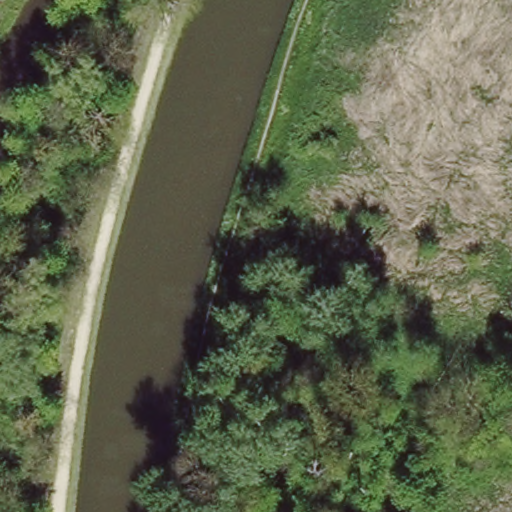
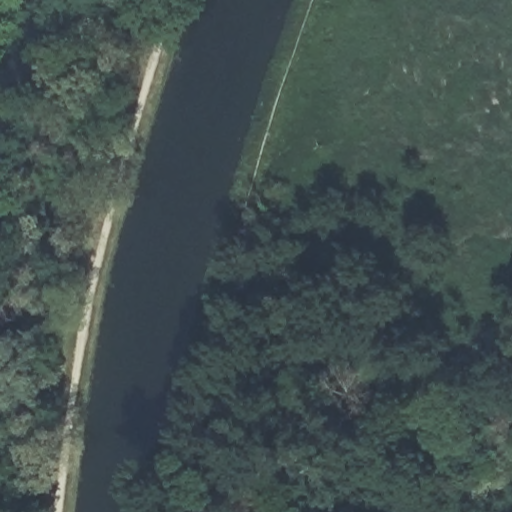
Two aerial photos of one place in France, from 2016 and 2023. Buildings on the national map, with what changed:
[]

